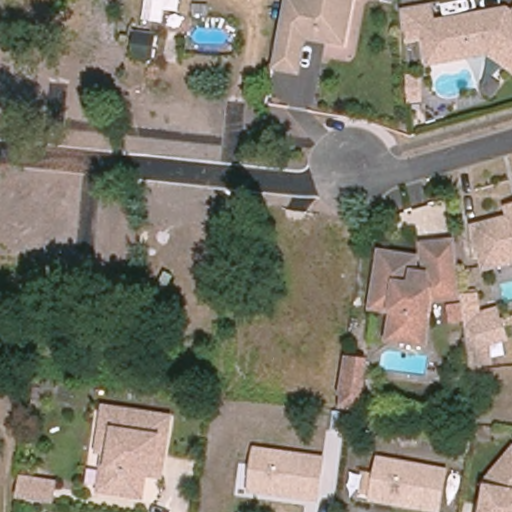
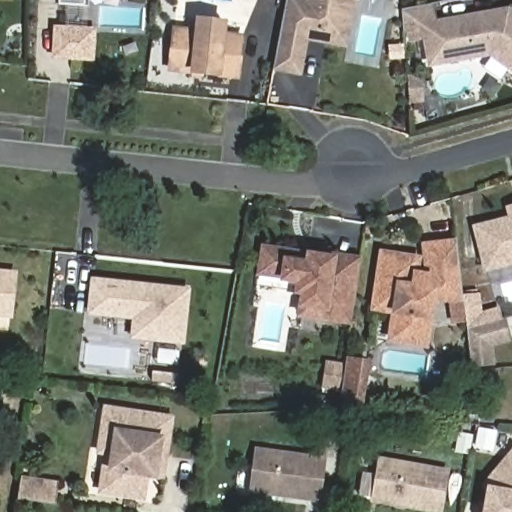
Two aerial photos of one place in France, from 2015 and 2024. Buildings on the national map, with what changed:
new [(88,5),(85,5),(60,4),(61,0),(89,0),(88,5)]
demolished [(180,11),(163,8),(162,21),(138,18),(142,0),(181,0),(180,11)]
unchanged [(347,47),(308,40),(301,75),(271,70),(285,0),(356,0),(347,47)]
demolished [(46,54),(33,53),(35,5),(48,6),(46,54)]
unchanged [(491,57),(452,64),(431,67),(425,29),(404,33),(403,11),(428,7),(431,27),(461,22),(497,17),(506,23),(511,15),(512,16),(512,73),(491,57)]
new [(245,33),(240,78),(221,76),(190,73),(168,72),(173,27),(195,29),(197,17),(227,19),(226,32),(245,33)]
new [(95,61),(51,59),(53,24),(98,26),(95,61)]
demolished [(157,34),(152,61),(132,57),(137,31),(157,34)]
unchanged [(426,100),(407,103),(404,73),(423,71),(426,100)]
unchanged [(510,215),(512,215),(512,221),(510,215)]
unchanged [(487,272),(476,232),(512,223),(512,266),(487,272)]
unchanged [(460,292),(432,295),(425,335),(421,338),(408,336),(394,334),(391,330),(394,306),(373,302),(382,248),(418,253),(416,264),(422,265),(427,265),(425,247),(424,240),(427,240),(455,237),(456,237),(459,266),(460,273),(459,273),(460,274),(462,291),(460,292)]
new [(352,325),(326,321),(296,318),(298,308),(299,295),(293,294),(294,284),(280,282),(257,276),(261,243),(306,251),(306,246),(363,256),(352,325)]
new [(0,317),(0,268),(17,270),(13,318),(0,317)]
new [(185,344),(131,339),(132,320),(87,316),(91,278),(191,287),(185,344)]
unchanged [(481,310),(500,305),(512,341),(492,345),(497,364),(482,367),(478,348),(457,353),(452,330),(468,327),(463,296),(480,292),(481,310)]
unchanged [(371,360),(369,383),(379,384),(376,399),(366,400),(364,417),(343,415),(350,359),(371,360)]
unchanged [(164,457),(157,456),(154,477),(147,476),(144,499),(103,493),(106,469),(110,469),(115,434),(102,432),(105,410),(170,420),(164,457)]
unchanged [(319,501),(248,492),(255,447),(327,457),(319,501)]
unchanged [(443,512),(432,512),(370,503),(377,455),(450,467),(443,512)]
unchanged [(485,512),(489,488),(485,484),(512,455),(512,512),(485,512)]
unchanged [(57,505),(23,499),(26,480),(60,485),(57,505)]

